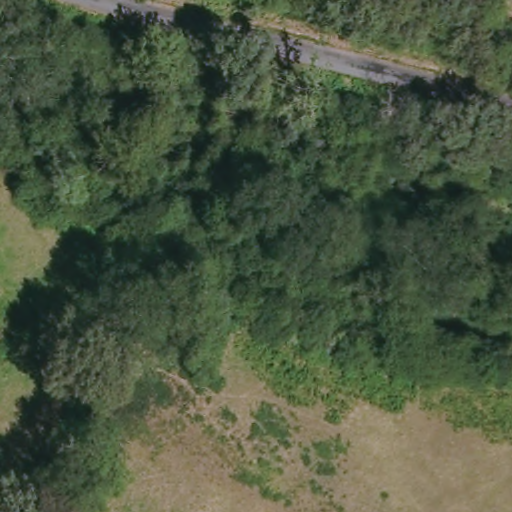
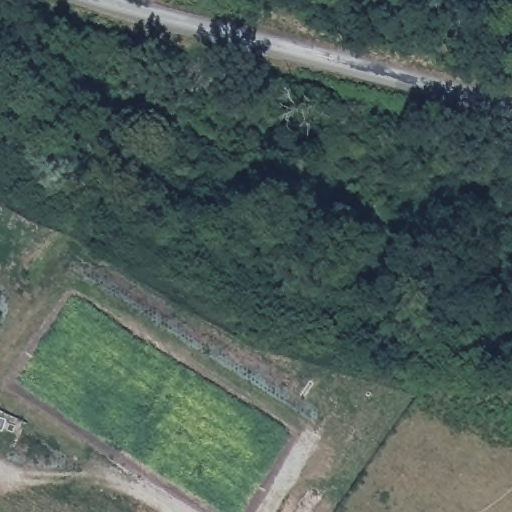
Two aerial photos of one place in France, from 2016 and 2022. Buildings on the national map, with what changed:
[]

